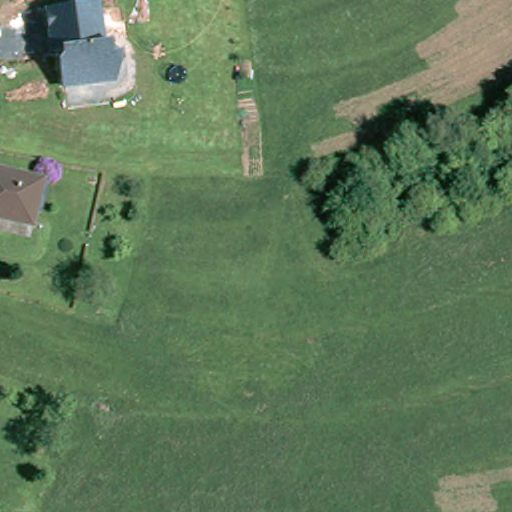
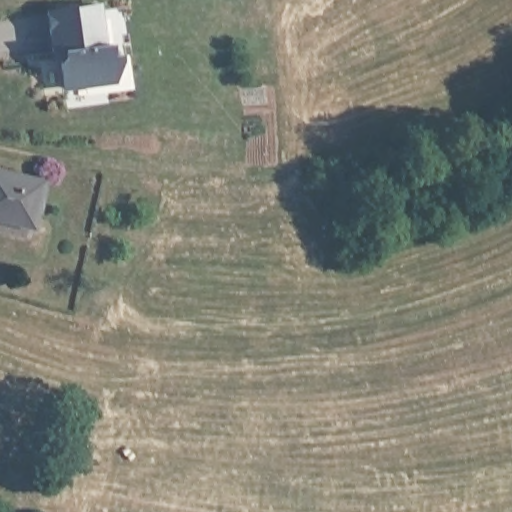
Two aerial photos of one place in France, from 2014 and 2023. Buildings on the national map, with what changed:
unchanged [(100,4),(105,41),(110,40),(116,82),(60,90),(48,10),(100,4)]
unchanged [(29,222),(0,214),(0,174),(40,184),(29,222)]

